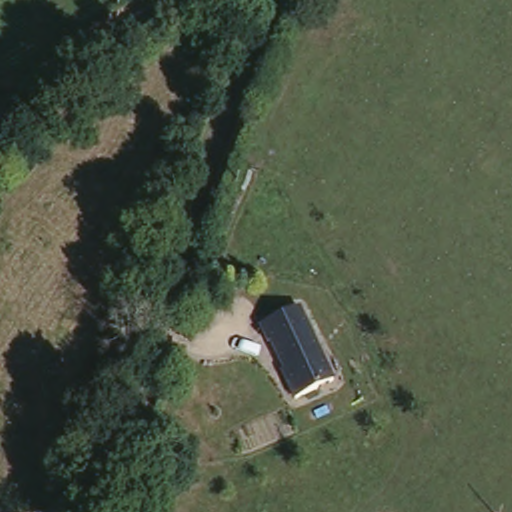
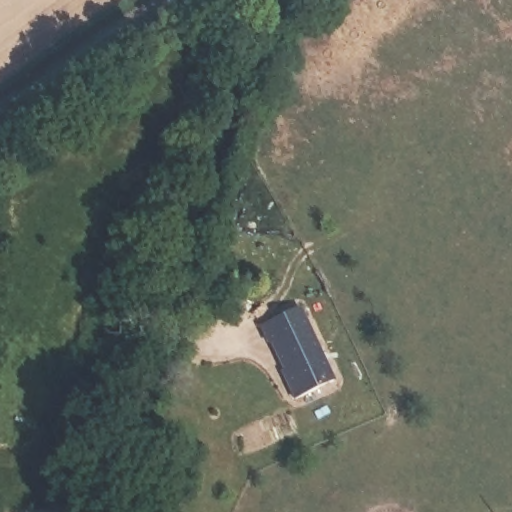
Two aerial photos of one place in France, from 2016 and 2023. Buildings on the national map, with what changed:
unchanged [(295,404),(285,384),(287,383),(270,347),(268,349),(260,331),(298,313),(333,387),(295,404)]

